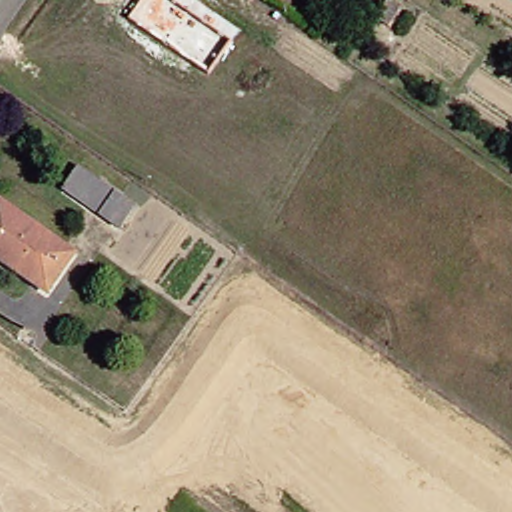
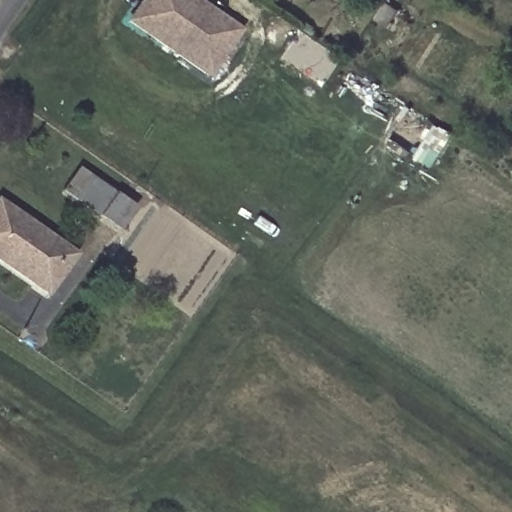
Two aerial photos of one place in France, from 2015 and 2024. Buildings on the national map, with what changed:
new [(241,31),(208,80),(125,23),(141,0),(197,0),(241,31)]
unchanged [(112,224),(56,185),(71,163),(127,202),(112,224)]
unchanged [(0,261),(0,205),(65,251),(39,289),(0,261)]

